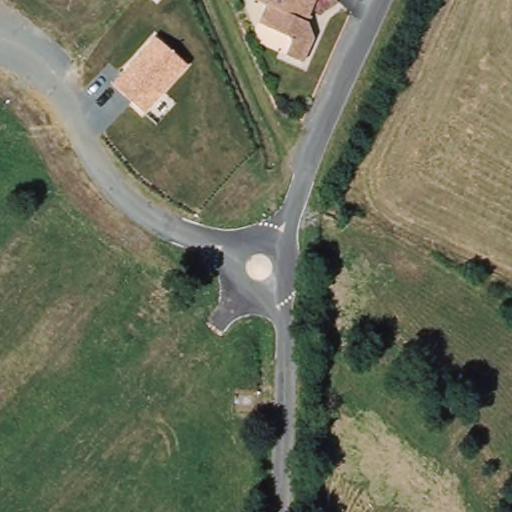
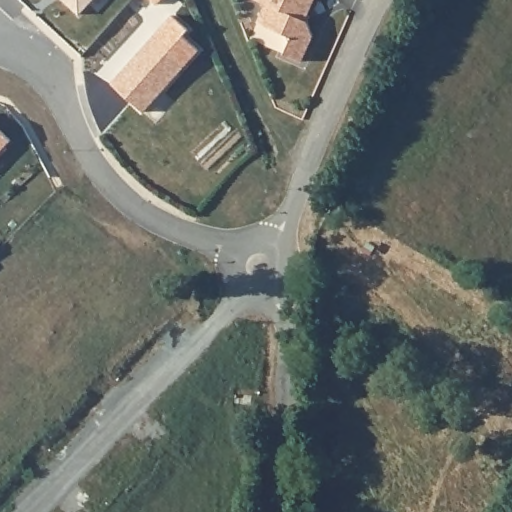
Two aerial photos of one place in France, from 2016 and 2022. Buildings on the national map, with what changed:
new [(62,0),(94,0),(80,16),(62,0)]
unchanged [(245,0),(308,0),(297,23),(300,37),(286,66),(268,59),(277,40),(251,28),(260,8),(245,1),(245,0)]
unchanged [(187,65),(143,112),(112,83),(154,36),(187,65)]
new [(0,149),(0,135),(7,142),(0,149)]

